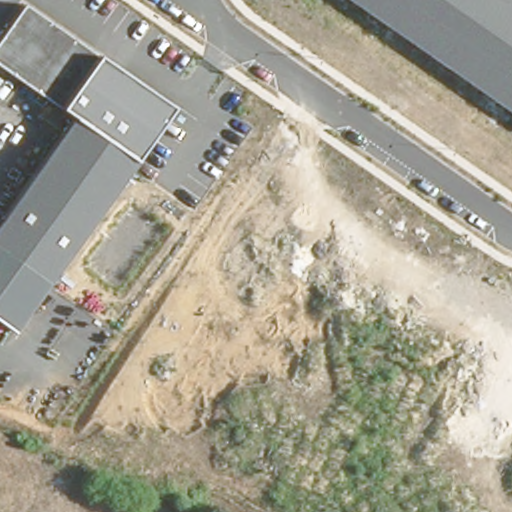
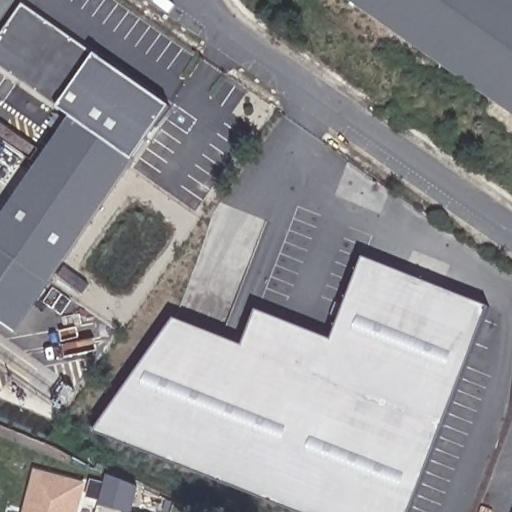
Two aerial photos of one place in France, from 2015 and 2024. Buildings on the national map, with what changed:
unchanged [(512,113),(350,0),(512,0),(512,113)]
unchanged [(170,107),(16,332),(0,321),(0,220),(71,117),(0,67),(0,42),(25,7),(170,107)]
new [(241,346),(255,311),(331,341),(363,258),(486,308),(406,512),(298,512),(93,431),(173,319),(241,346)]
new [(23,512),(35,469),(82,482),(74,512),(23,512)]
new [(132,507),(122,504),(120,511),(98,505),(107,475),(137,486),(132,507)]
new [(132,512),(126,512),(126,511),(132,512)]

